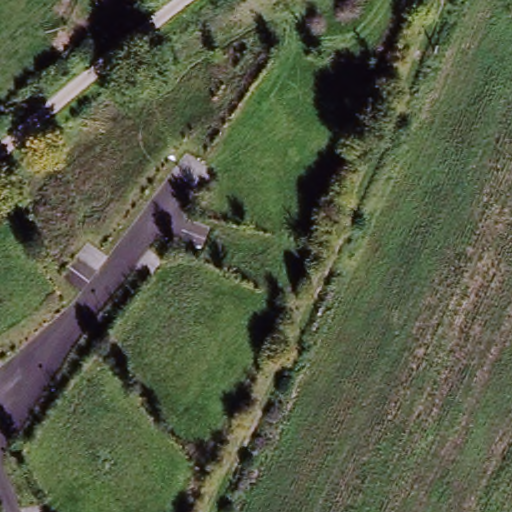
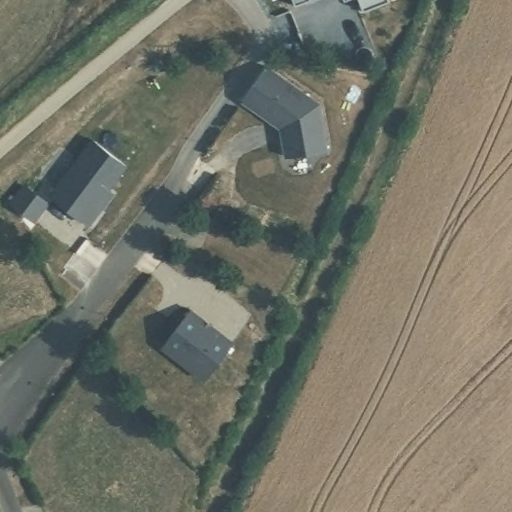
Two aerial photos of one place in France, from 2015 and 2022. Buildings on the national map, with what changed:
new [(294,5),(293,0),(305,0),(294,5)]
new [(309,1),(308,0),(311,0),(309,1)]
new [(362,10),(358,0),(385,0),(362,10)]
new [(320,103),(326,150),(284,159),(279,129),(241,103),(266,65),(320,103)]
new [(128,166),(110,190),(113,193),(88,226),(47,196),(91,139),(128,166)]
new [(233,342),(204,382),(161,349),(189,308),(233,342)]

